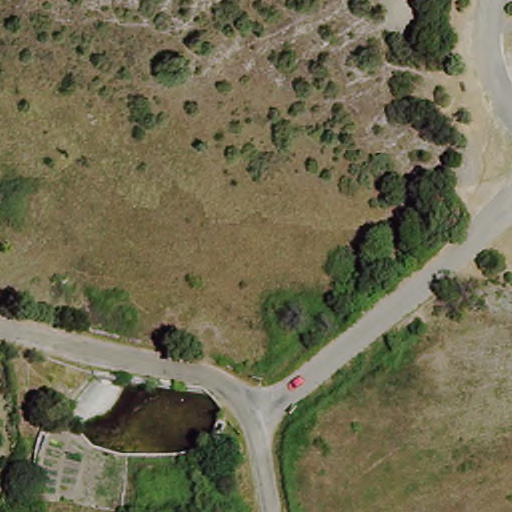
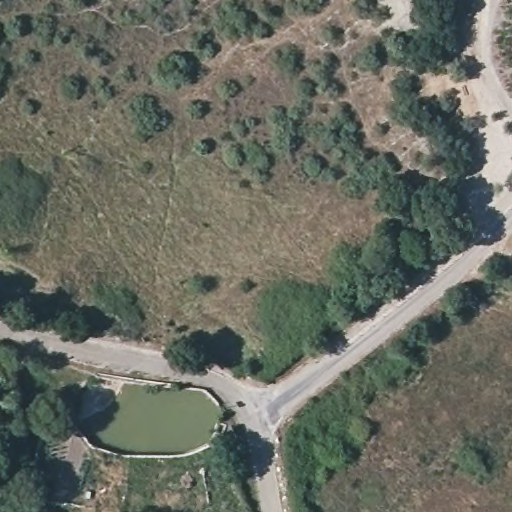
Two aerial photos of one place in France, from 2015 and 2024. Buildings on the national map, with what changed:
[]

